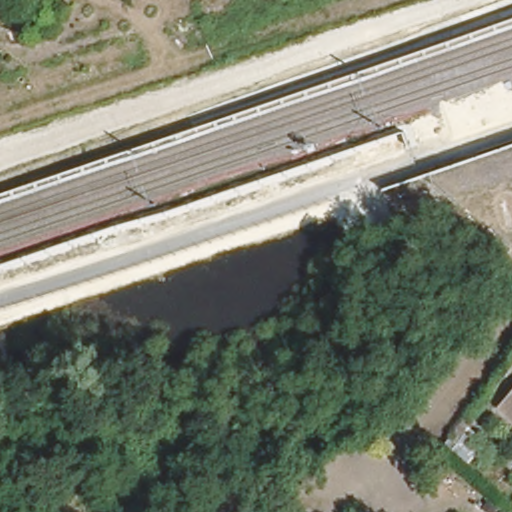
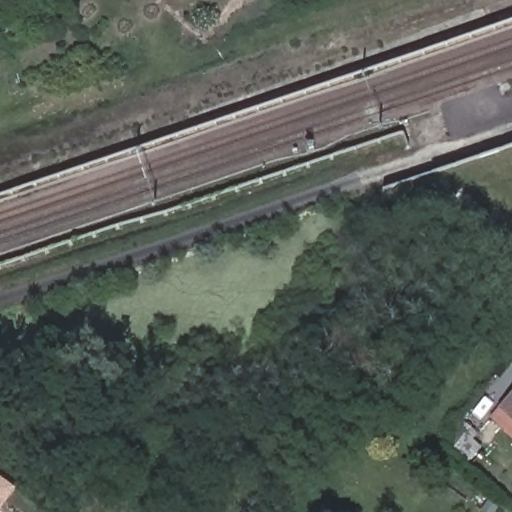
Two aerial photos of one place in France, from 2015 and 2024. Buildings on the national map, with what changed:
unchanged [(501,412),(512,401),(512,423),(501,412)]
new [(0,509),(0,479),(16,488),(0,509)]

